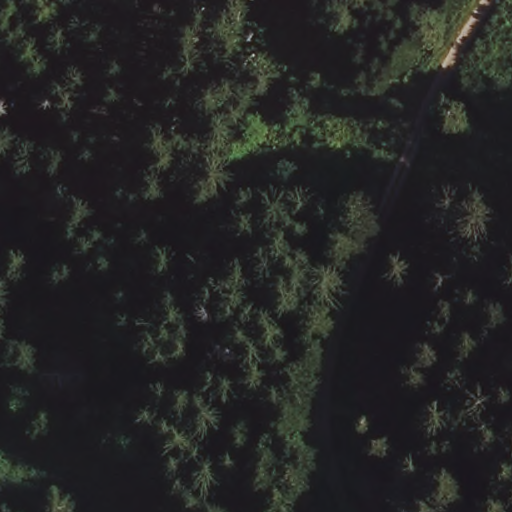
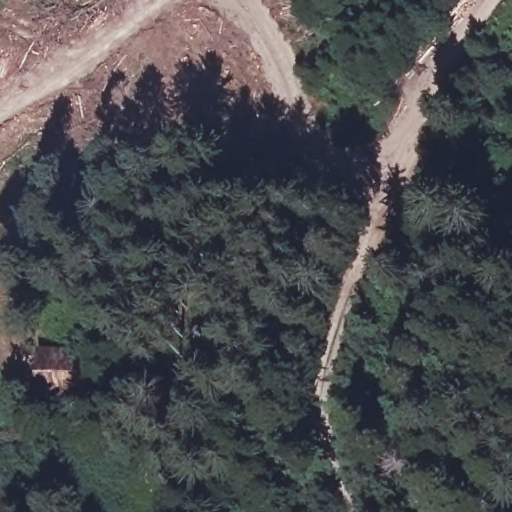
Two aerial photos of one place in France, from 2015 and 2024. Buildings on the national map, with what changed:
unchanged [(77,357),(75,404),(30,403),(30,355),(77,357)]

